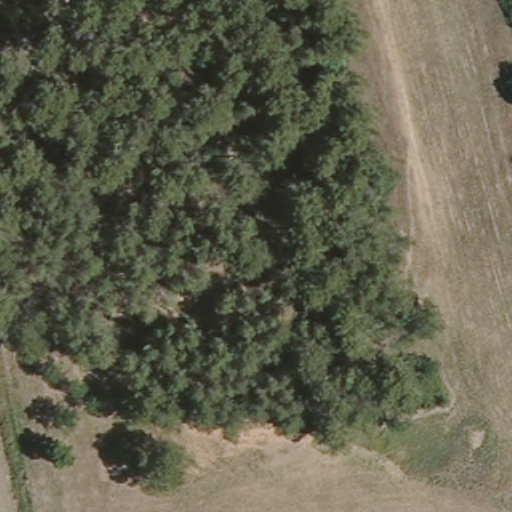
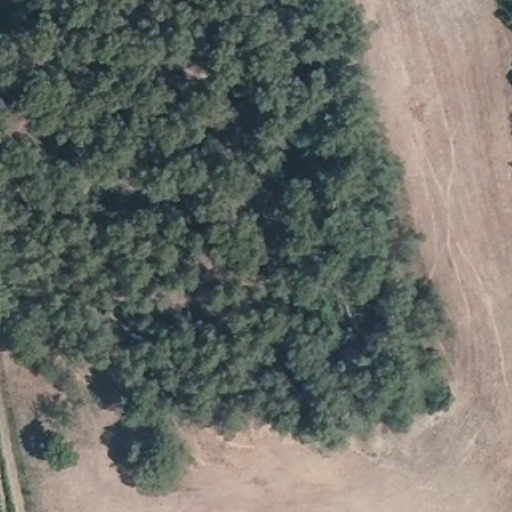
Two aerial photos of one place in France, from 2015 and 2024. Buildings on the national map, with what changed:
[]

